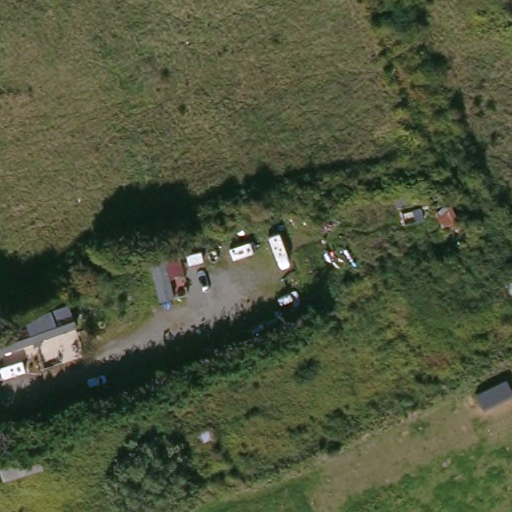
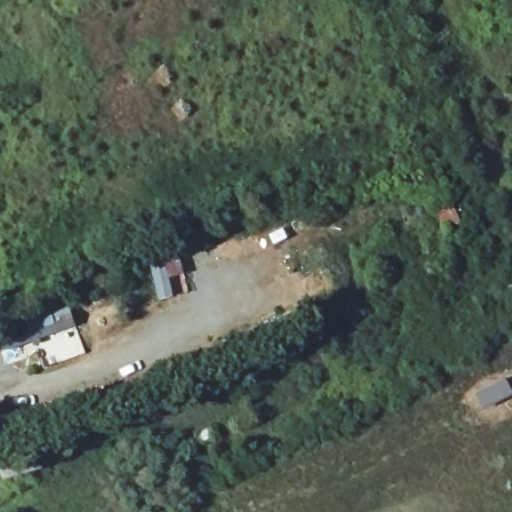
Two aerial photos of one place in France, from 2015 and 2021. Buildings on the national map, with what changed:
unchanged [(20,344),(15,330),(45,320),(42,312),(67,304),(70,312),(74,310),(87,306),(91,320),(33,340),(20,344)]
unchanged [(7,449),(44,437),(53,464),(16,477),(7,449)]

